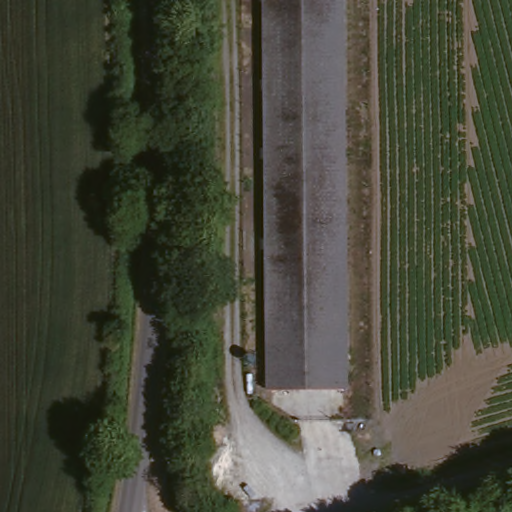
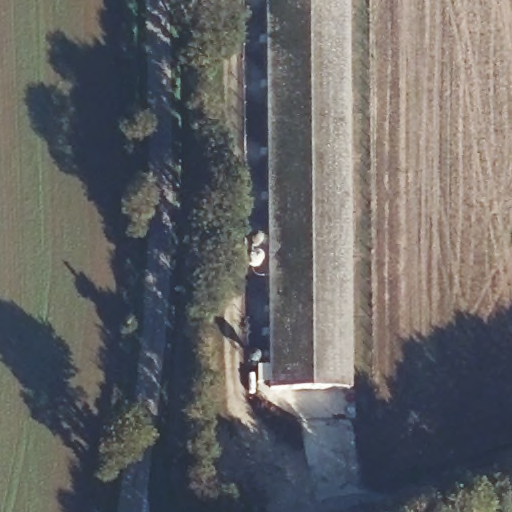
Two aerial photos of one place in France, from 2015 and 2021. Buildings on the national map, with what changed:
unchanged [(355,388),(273,390),(261,0),(342,0),(355,388)]

